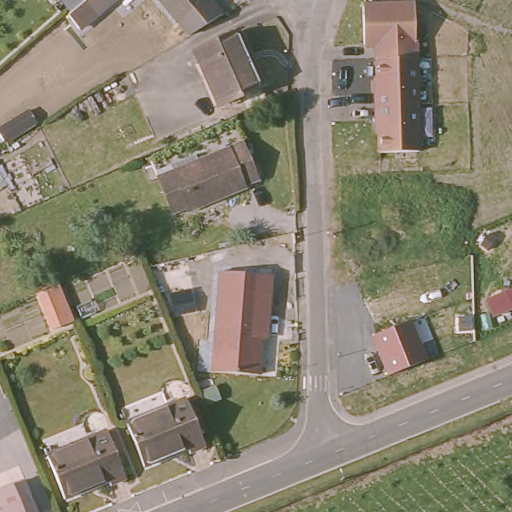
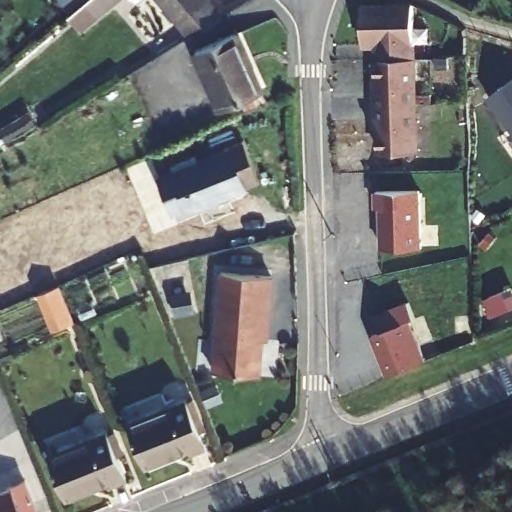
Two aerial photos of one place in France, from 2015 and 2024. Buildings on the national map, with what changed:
unchanged [(100,19),(84,32),(71,15),(89,0),(124,0),(100,19)]
unchanged [(228,20),(196,39),(193,41),(191,42),(160,0),(212,0),(228,20)]
unchanged [(426,151),(387,154),(379,45),(368,45),(366,7),(416,3),(426,151)]
unchanged [(234,36),(253,92),(214,110),(193,53),(234,36)]
new [(485,97),(512,76),(512,134),(485,97)]
unchanged [(166,171),(236,149),(249,186),(191,205),(190,200),(177,205),(166,171)]
new [(381,206),(376,207),(375,192),(422,190),(423,248),(380,250),(381,206)]
unchanged [(221,270),(274,275),(271,339),(266,338),(262,374),(213,370),(221,270)]
unchanged [(44,330),(25,293),(51,283),(66,321),(44,330)]
unchanged [(409,301),(416,318),(412,321),(381,331),(376,315),(409,301)]
unchanged [(426,360),(387,373),(374,335),(412,321),(426,360)]
unchanged [(203,450),(186,458),(182,450),(140,466),(125,425),(184,403),(203,450)]
unchanged [(41,456),(100,433),(118,480),(102,487),(98,479),(56,494),(41,456)]
unchanged [(28,512),(0,512),(0,493),(16,486),(28,512)]

